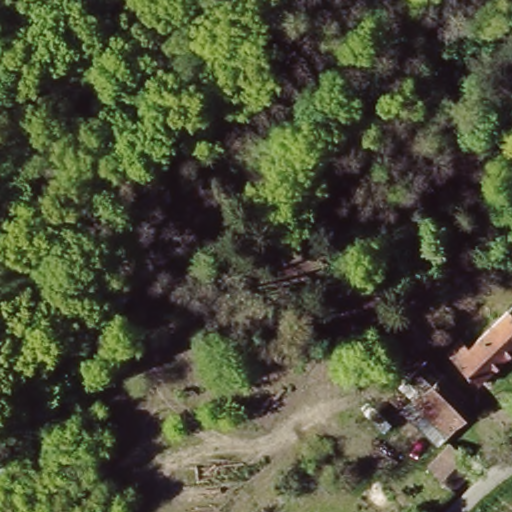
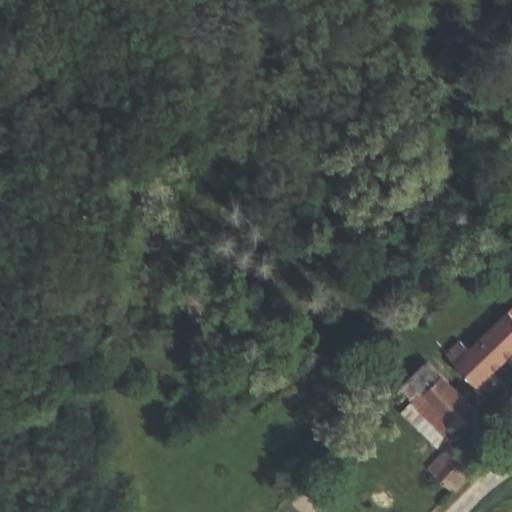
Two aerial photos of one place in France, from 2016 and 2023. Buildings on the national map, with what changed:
unchanged [(181,305),(205,282),(221,299),(198,322),(181,305)]
unchanged [(512,311),(512,357),(476,392),(441,356),(452,344),(462,353),(463,354),(509,308),(512,311)]
unchanged [(475,408),(438,445),(401,408),(417,392),(405,379),(425,358),(475,408)]
unchanged [(460,485),(452,492),(426,466),(449,445),(474,471),(460,485)]

